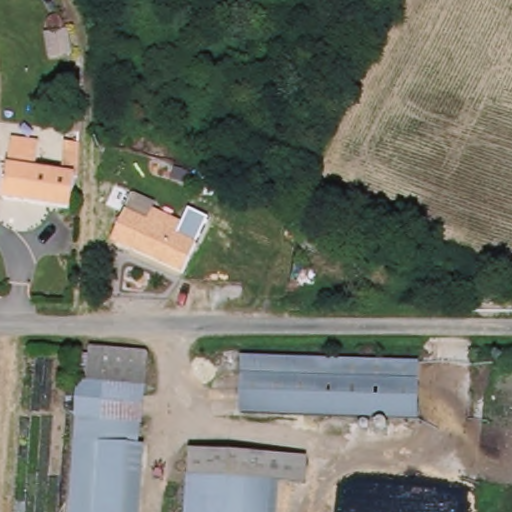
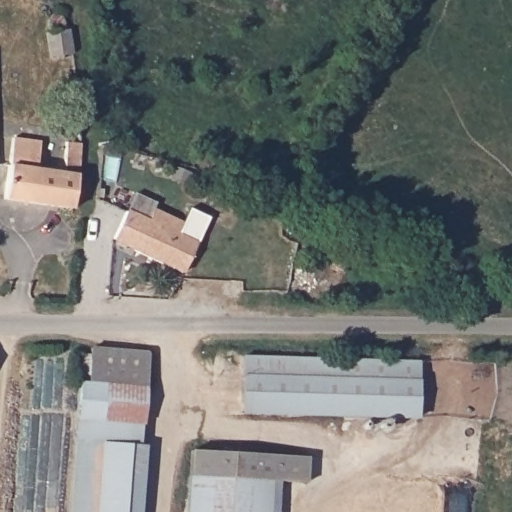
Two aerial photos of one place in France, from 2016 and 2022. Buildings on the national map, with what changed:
unchanged [(58,28),(59,31),(62,30),(64,39),(71,37),(77,62),(55,68),(45,31),(58,28)]
unchanged [(51,138),(47,166),(70,169),(72,107),(90,107),(88,151),(79,211),(13,200),(23,134),(51,138)]
unchanged [(1,165),(0,165),(0,140),(1,165)]
unchanged [(186,218),(181,231),(199,239),(186,269),(119,239),(138,197),(186,218)]
unchanged [(92,382),(97,346),(153,350),(153,386),(146,446),(153,446),(149,512),(74,512),(84,382),(92,382)]
unchanged [(427,360),(425,421),(245,416),(248,354),(427,360)]
unchanged [(314,485),(281,483),(279,512),(201,512),(205,451),(316,459),(314,485)]

